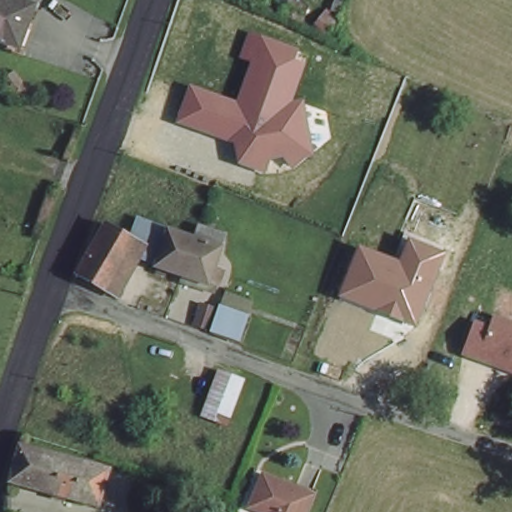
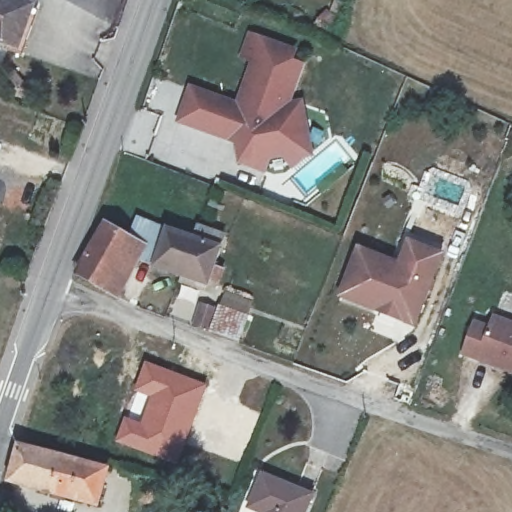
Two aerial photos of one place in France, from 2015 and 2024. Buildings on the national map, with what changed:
unchanged [(33,6),(21,46),(0,38),(0,0),(19,0),(33,6)]
unchanged [(250,60),(242,57),(249,36),(307,57),(292,99),(306,103),(315,156),(293,169),(285,162),(271,162),(266,176),(235,165),(231,144),(177,124),(190,84),(237,101),(250,60)]
unchanged [(79,276),(90,254),(92,255),(107,230),(128,242),(138,219),(169,232),(157,267),(140,260),(130,275),(117,298),(107,292),(79,276)]
unchanged [(226,272),(220,290),(183,276),(157,267),(169,232),(196,242),(201,229),(226,238),(222,250),(216,268),(226,272)]
unchanged [(405,321),(341,295),(360,250),(402,268),(410,243),(434,253),(405,321)]
unchanged [(237,341),(212,332),(221,306),(247,315),(237,341)]
unchanged [(195,325),(201,308),(214,313),(208,330),(195,325)]
unchanged [(512,375),(460,357),(474,320),(488,324),(493,315),(512,321),(512,375)]
new [(124,416),(140,421),(142,416),(128,411),(135,392),(132,391),(143,361),(206,384),(177,465),(114,442),(124,416)]
unchanged [(230,426),(198,416),(213,370),(246,381),(230,426)]
unchanged [(11,479),(18,445),(108,467),(99,502),(11,479)]
unchanged [(269,479),(315,497),(309,512),(274,512),(257,506),(269,479)]
unchanged [(257,506),(274,512),(258,512),(255,511),(257,506)]

